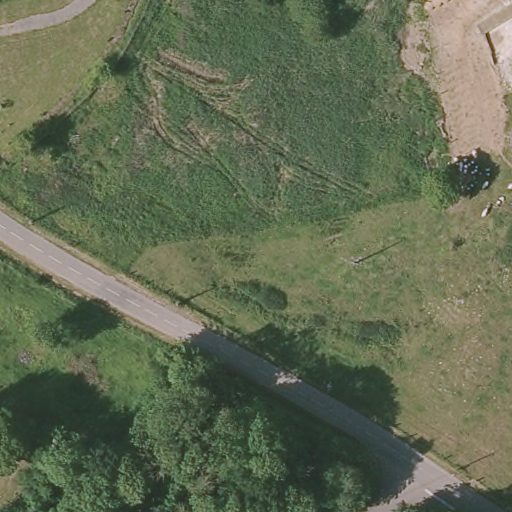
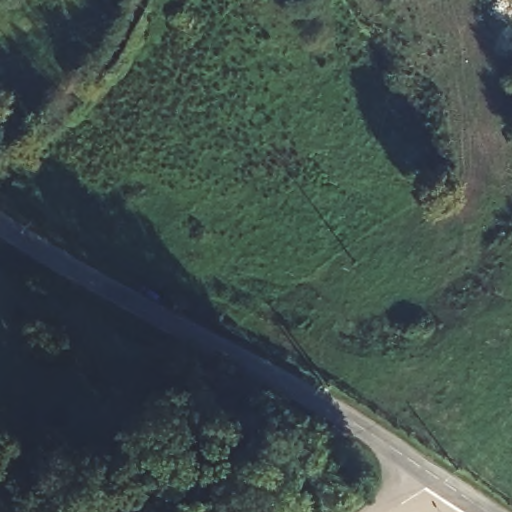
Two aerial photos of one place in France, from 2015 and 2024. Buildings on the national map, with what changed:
[]

